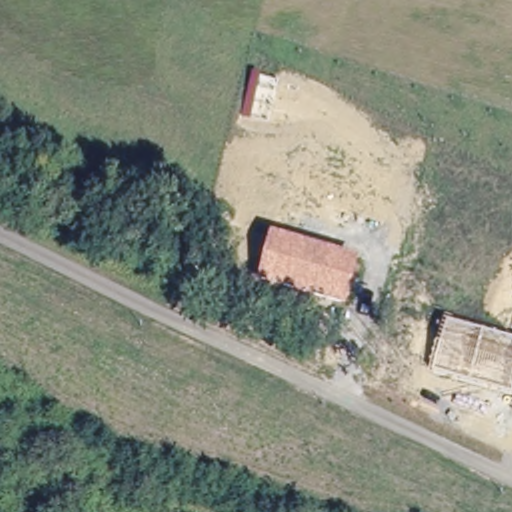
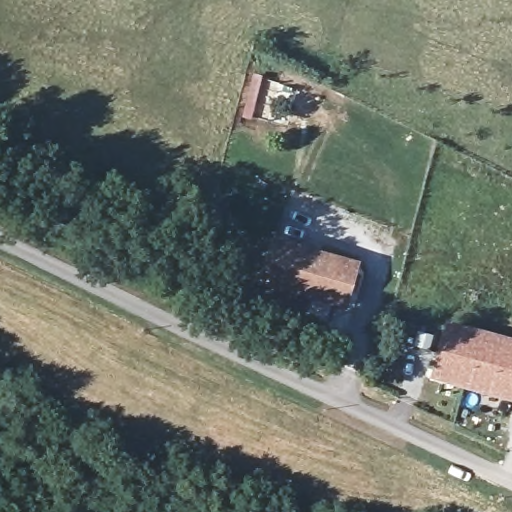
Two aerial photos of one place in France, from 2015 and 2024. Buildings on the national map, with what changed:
unchanged [(346,309),(258,283),(271,237),(359,260),(346,309)]
unchanged [(512,398),(430,376),(443,323),(512,342),(512,398)]

